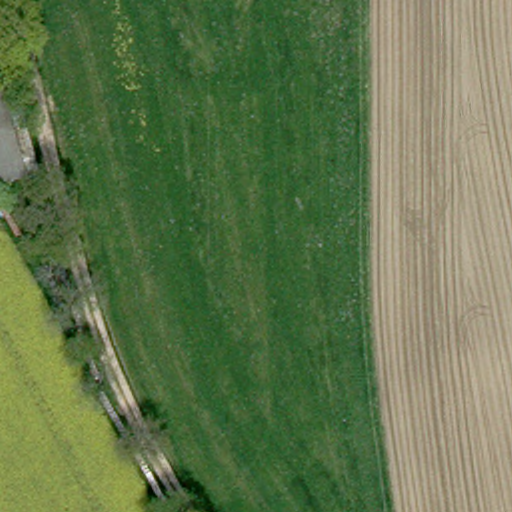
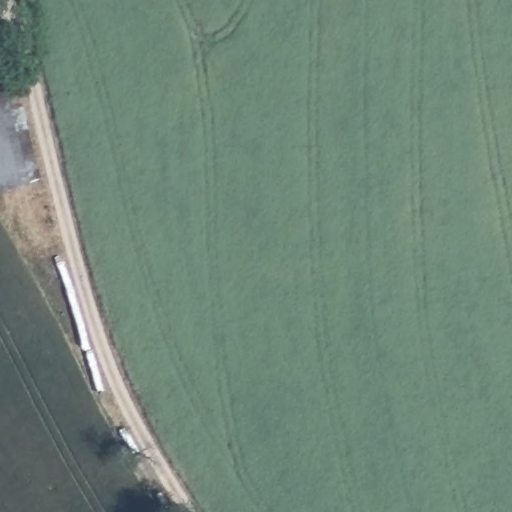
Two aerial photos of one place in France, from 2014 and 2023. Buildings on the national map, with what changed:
unchanged [(34,182),(0,189),(0,90),(7,88),(34,182)]

